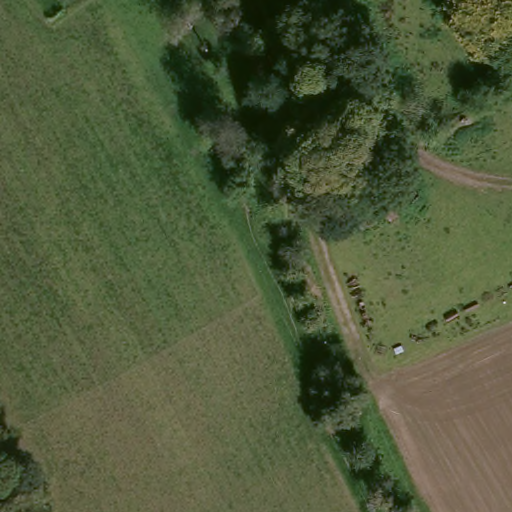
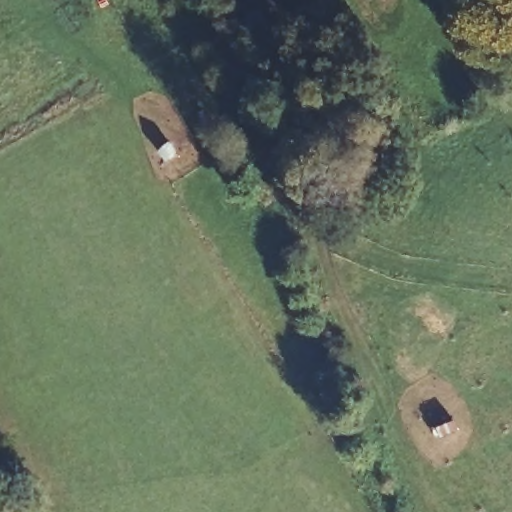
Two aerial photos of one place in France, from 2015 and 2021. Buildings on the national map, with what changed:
unchanged [(311,0),(342,0),(344,3),(320,16),(311,0)]

